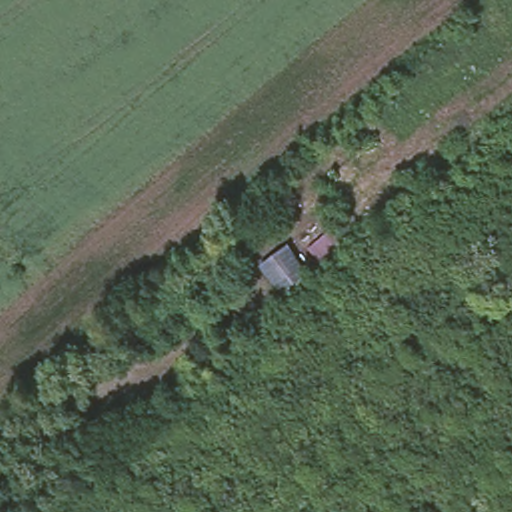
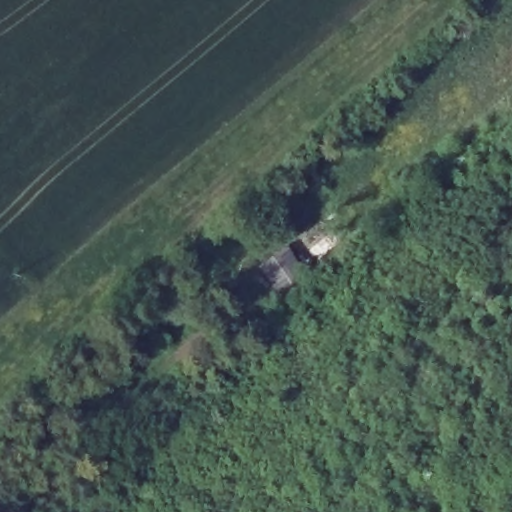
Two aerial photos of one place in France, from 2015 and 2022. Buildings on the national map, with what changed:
unchanged [(308,271),(277,293),(256,262),(287,240),(308,271)]

